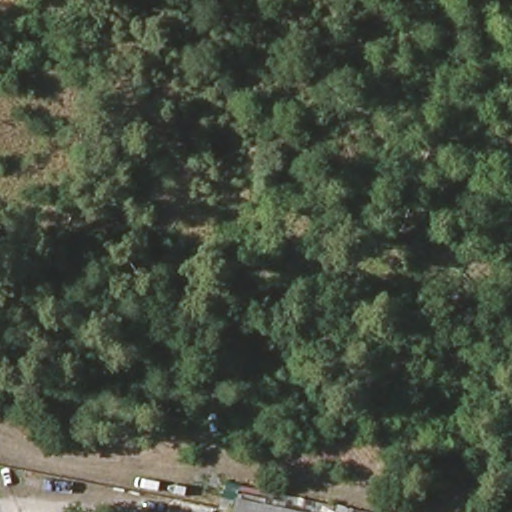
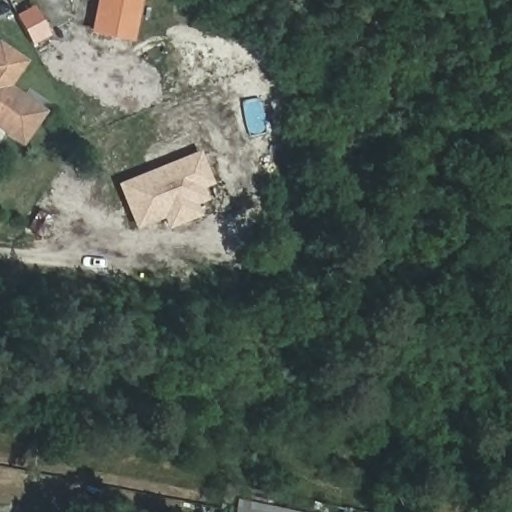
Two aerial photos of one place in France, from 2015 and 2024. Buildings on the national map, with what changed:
new [(141,0),(133,41),(89,32),(95,0),(141,0)]
new [(37,42),(32,31),(26,35),(15,14),(33,4),(50,35),(37,42)]
new [(115,79),(126,37),(140,40),(129,83),(122,111),(118,125),(104,121),(107,107),(115,79)]
new [(21,61),(4,85),(40,111),(19,142),(0,128),(0,46),(21,61)]
new [(117,183),(200,150),(212,181),(204,188),(209,200),(196,204),(201,215),(167,230),(163,218),(137,230),(133,222),(117,183)]
unchanged [(275,512),(239,512),(240,507),(275,512)]

